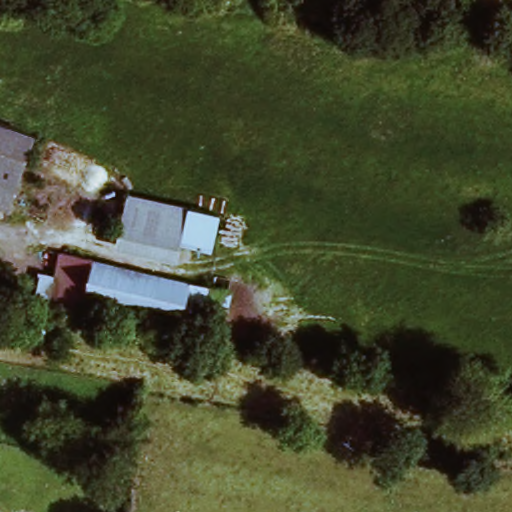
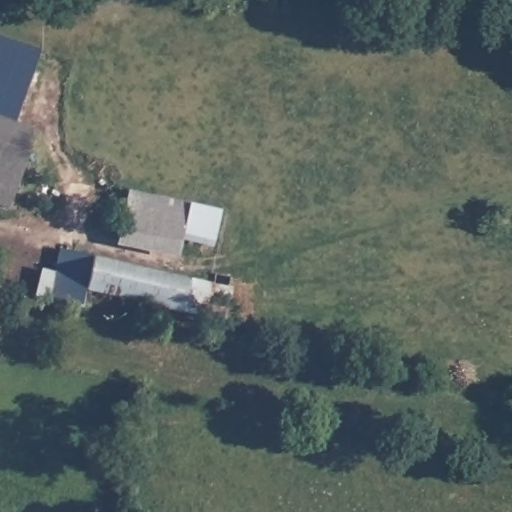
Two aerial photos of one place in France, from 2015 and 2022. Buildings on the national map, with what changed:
new [(40,54),(15,127),(0,121),(0,40),(40,54)]
unchanged [(34,134),(7,205),(0,202),(0,121),(34,134)]
unchanged [(225,208),(220,247),(185,243),(183,257),(123,246),(131,190),(225,208)]
unchanged [(220,325),(177,315),(178,305),(85,284),(81,301),(50,292),(60,260),(62,247),(92,256),(230,287),(220,325)]

